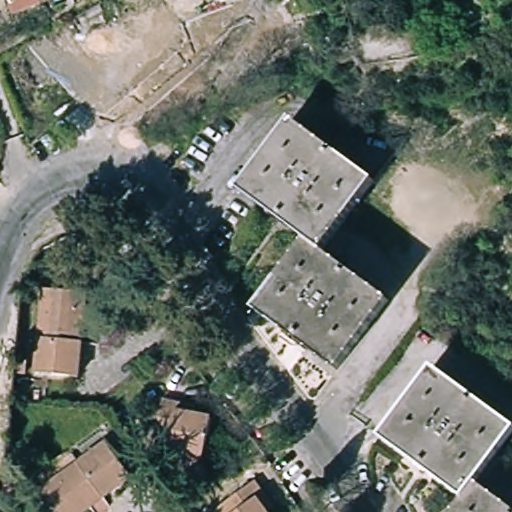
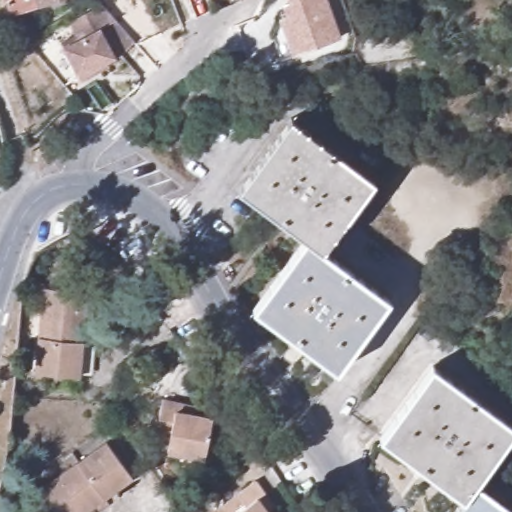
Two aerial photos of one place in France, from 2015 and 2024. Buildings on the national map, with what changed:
unchanged [(2,0),(48,0),(7,14),(2,0)]
new [(286,20),(285,17),(292,15),(288,4),(295,1),(295,0),(328,0),(340,35),(338,40),(284,59),(275,33),(280,23),(286,20)]
new [(105,70),(83,81),(63,44),(79,36),(72,22),(104,5),(137,43),(124,54),(109,62),(112,66),(105,70)]
unchanged [(333,372),(250,310),(302,239),(236,189),(290,119),(371,181),(318,251),(385,301),(333,372)]
unchanged [(32,374),(39,291),(73,293),(80,294),(77,343),(74,377),(32,374)]
unchanged [(465,499),(383,436),(438,367),(512,425),(512,441),(479,484),(512,511),(512,512),(454,512),(465,499)]
unchanged [(200,456),(164,449),(166,442),(150,439),(158,400),(174,403),(189,407),(188,414),(207,418),(200,456)]
unchanged [(36,492),(103,444),(128,478),(79,512),(51,512),(36,492)]
unchanged [(215,507),(253,481),(262,494),(271,507),(265,511),(266,512),(218,512),(215,507)]

